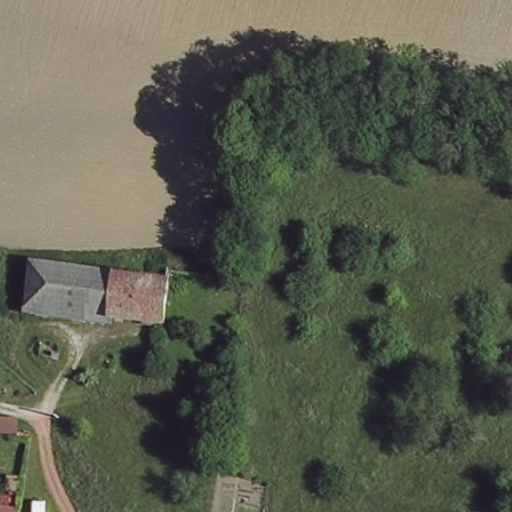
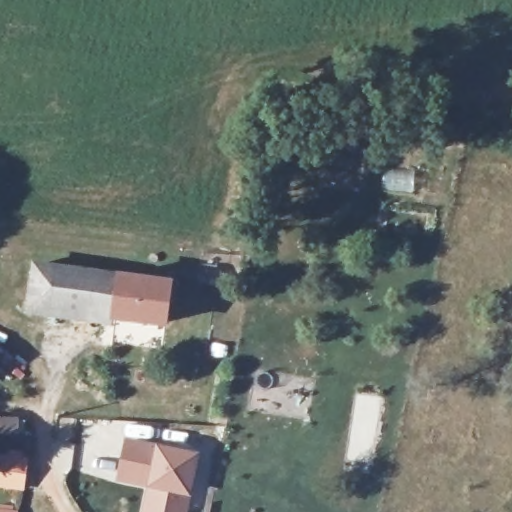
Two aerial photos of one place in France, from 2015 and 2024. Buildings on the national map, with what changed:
unchanged [(167,278),(165,321),(30,305),(34,265),(167,278)]
new [(190,498),(187,512),(142,512),(146,487),(117,481),(125,437),(158,445),(199,453),(190,498)]
new [(30,457),(25,492),(0,489),(0,452),(30,457)]

